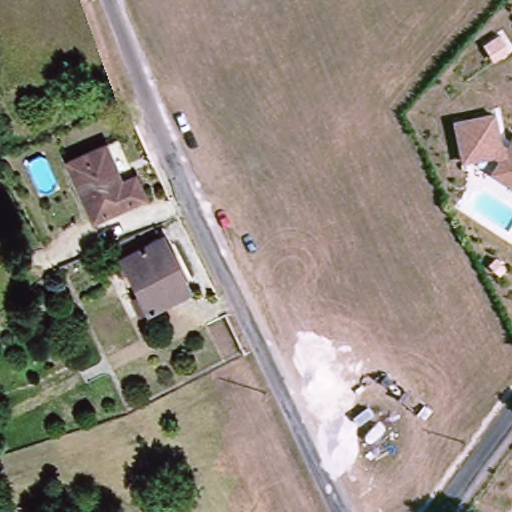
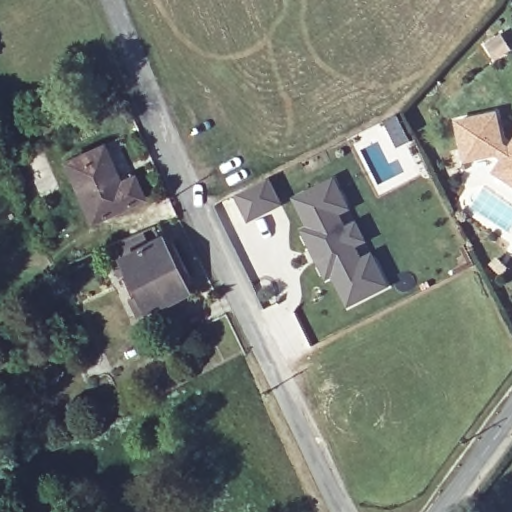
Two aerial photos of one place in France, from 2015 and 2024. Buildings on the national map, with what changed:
unchanged [(499,112),(508,147),(512,140),(512,189),(492,177),(502,155),(462,165),(452,123),(499,112)]
new [(397,114),(411,141),(396,149),(382,122),(397,114)]
unchanged [(121,182),(131,177),(143,198),(100,220),(68,165),(100,147),(121,182)]
new [(301,230),(308,227),(294,199),(333,180),(345,203),(343,211),(332,217),(339,231),(355,222),(364,241),(348,248),(355,263),(366,257),(374,260),(387,286),(347,306),(332,275),(326,278),(316,260),(310,263),(304,252),(311,249),(301,230)]
new [(266,181),(279,207),(266,213),(246,223),(233,197),(253,188),(266,181)]
unchanged [(155,243),(162,239),(187,292),(147,312),(112,247),(148,231),(155,243)]

